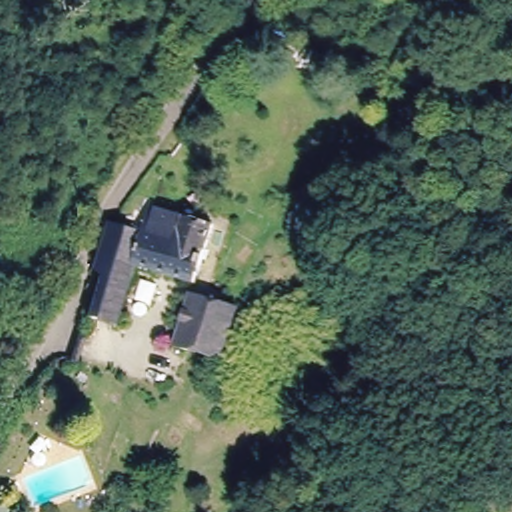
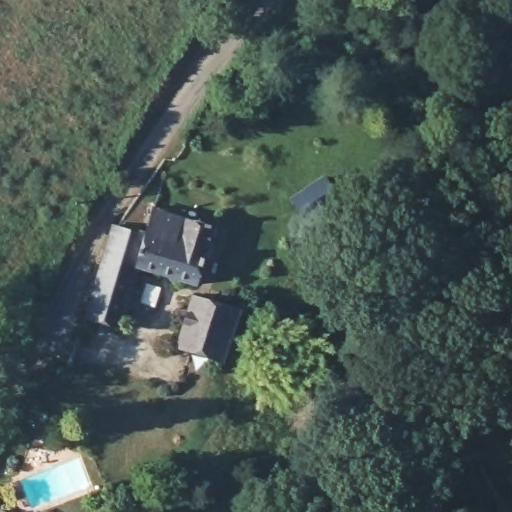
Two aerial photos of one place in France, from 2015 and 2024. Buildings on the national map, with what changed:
unchanged [(326,178),(342,201),(305,224),(290,202),(326,178)]
unchanged [(143,235),(150,210),(208,230),(192,287),(133,267),(116,331),(78,318),(104,224),(110,225),(143,235)]
unchanged [(190,361),(192,349),(174,343),(187,292),(235,305),(219,358),(216,357),(213,368),(190,361)]

